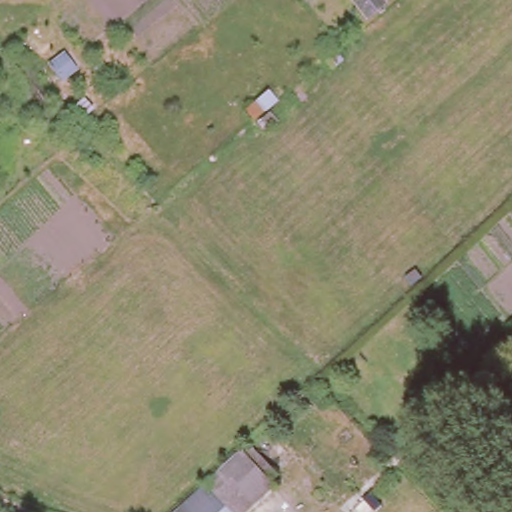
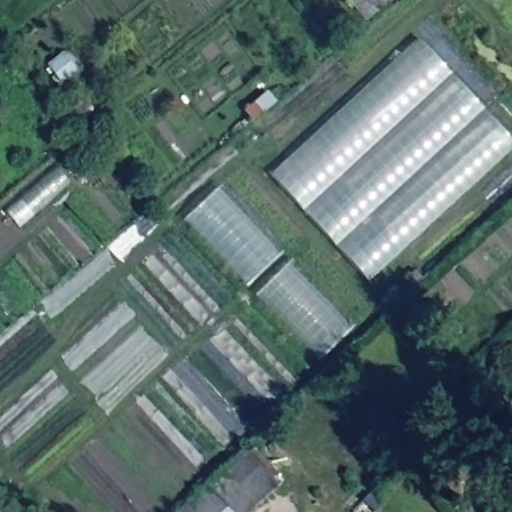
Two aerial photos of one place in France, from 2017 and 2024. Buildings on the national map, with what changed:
unchanged [(385,8),(365,24),(343,0),(377,0),(385,8)]
new [(367,282),(270,177),(417,39),(512,142),(512,147),(367,282)]
unchanged [(80,71),(64,85),(45,62),(62,51),(80,71)]
new [(278,257),(247,288),(183,221),(217,189),(278,257)]
new [(262,293),(285,271),(343,334),(322,355),(262,293)]
unchanged [(240,446),(267,474),(275,482),(273,484),(243,512),(169,512),(205,478),(240,446)]

